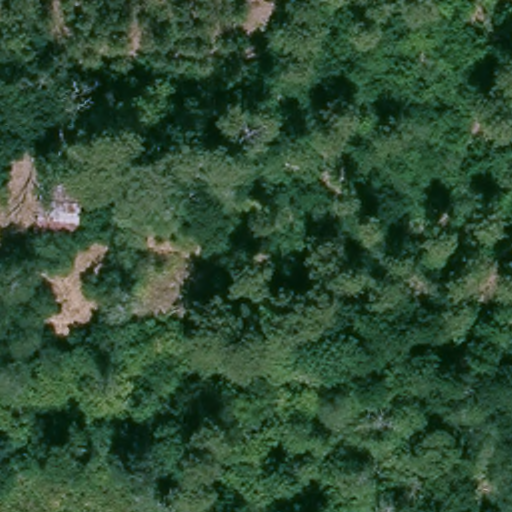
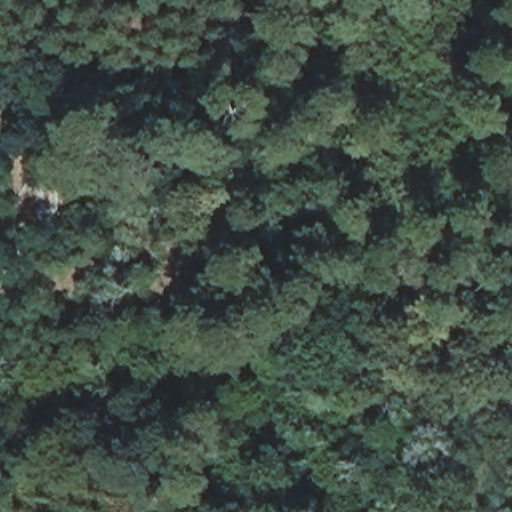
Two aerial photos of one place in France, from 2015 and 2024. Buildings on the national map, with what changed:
unchanged [(39,180),(84,184),(75,239),(34,233),(39,180)]

